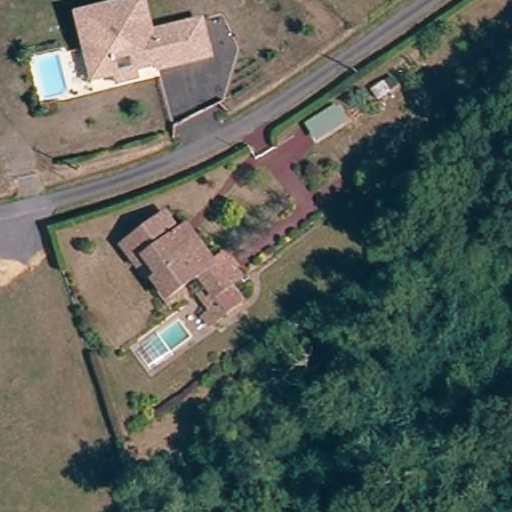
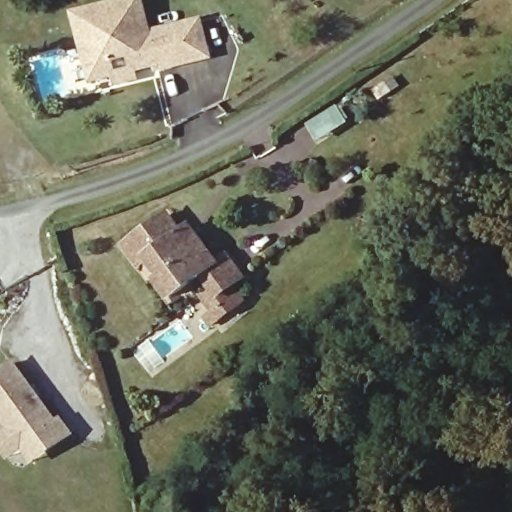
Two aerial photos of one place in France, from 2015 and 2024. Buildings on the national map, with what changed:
unchanged [(116,58),(114,61),(117,73),(93,78),(77,13),(132,0),(143,0),(151,32),(204,19),(213,55),(159,68),(157,63),(134,69),(131,57),(128,55),(116,58)]
unchanged [(117,73),(134,69),(137,78),(120,82),(117,73)]
unchanged [(312,138),(303,125),(329,107),(338,119),(312,138)]
unchanged [(215,318),(202,298),(212,291),(201,275),(175,294),(161,274),(168,270),(153,249),(149,252),(134,232),(169,208),(186,232),(200,223),(212,241),(208,244),(220,262),(232,253),(250,279),(219,301),(226,310),(215,318)]
demolished [(235,323),(215,337),(206,324),(215,318),(226,310),(235,323)]
new [(23,452),(8,462),(0,450),(0,435),(7,430),(0,420),(0,371),(15,360),(56,419),(61,416),(76,437),(34,467),(23,452)]

